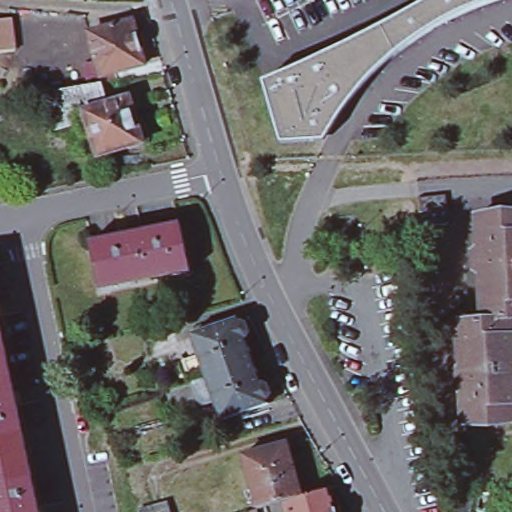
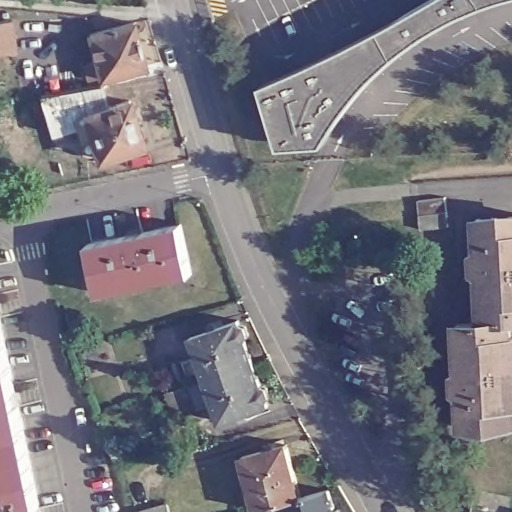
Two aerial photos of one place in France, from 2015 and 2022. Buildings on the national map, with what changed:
unchanged [(438,25),(418,38),(404,15),(426,2),(430,0),(452,0),(460,14),(438,25)]
unchanged [(482,5),(460,14),(452,0),(495,0),(482,5)]
unchanged [(282,144),(264,82),(281,75),(303,65),(325,55),(347,45),(368,34),(389,23),(404,15),(418,38),(399,52),(381,68),(364,85),(349,104),(336,124),(325,141),(282,144)]
unchanged [(11,18),(15,50),(0,52),(0,19),(11,18)]
unchanged [(136,22),(147,65),(105,76),(94,34),(136,22)]
unchanged [(104,84),(111,107),(80,117),(61,124),(52,94),(104,84)]
unchanged [(82,124),(80,117),(111,107),(132,100),(146,143),(103,157),(96,134),(92,135),(87,122),(82,124)]
unchanged [(422,229),(421,213),(419,199),(447,195),(448,210),(450,225),(422,229)]
unchanged [(489,316),(486,268),(481,269),(479,268),(478,267),(477,249),(477,248),(478,247),(484,246),(482,214),(512,211),(512,315),(489,316)]
unchanged [(83,240),(174,220),(184,268),(93,287),(79,291),(75,271),(89,268),(83,240)]
unchanged [(467,367),(463,318),(489,316),(512,315),(512,419),(470,421),(468,387),(463,388),(462,387),(461,387),(460,386),(459,370),(460,368),(461,367),(467,367)]
unchanged [(204,410),(180,418),(170,391),(195,382),(188,360),(203,355),(196,335),(242,319),(243,323),(250,325),(253,332),(249,338),(257,360),(265,384),(267,383),(271,385),(274,393),(272,398),(270,399),(272,404),(225,420),(218,400),(203,405),(204,410)]
unchanged [(36,512),(0,512),(0,350),(36,512)]
unchanged [(237,461),(280,450),(294,500),(278,505),(251,512),(237,461)]
unchanged [(325,491),(330,512),(279,512),(278,505),(294,500),(325,491)]
unchanged [(472,512),(458,512),(463,495),(476,498),(472,512)]
unchanged [(172,512),(139,512),(138,508),(169,501),(172,512)]
unchanged [(334,512),(332,512),(334,511),(334,512)]

